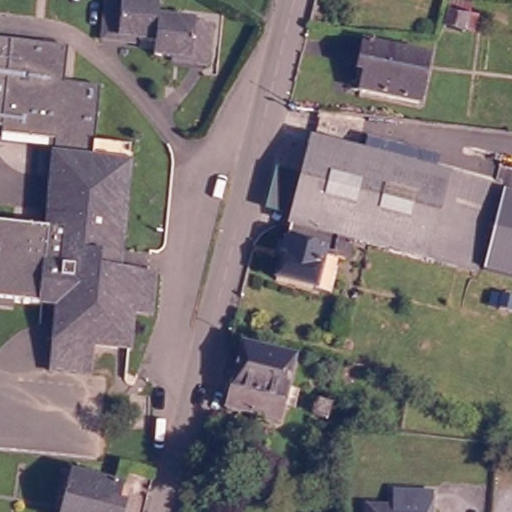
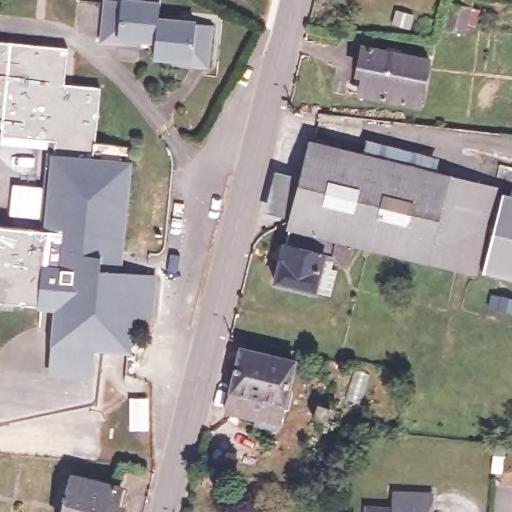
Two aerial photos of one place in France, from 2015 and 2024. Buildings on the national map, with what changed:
unchanged [(96,59),(100,3),(155,9),(155,26),(151,65),(141,64),(116,61),(96,59)]
unchanged [(155,26),(207,30),(204,77),(173,75),(174,65),(151,65),(155,26)]
unchanged [(54,77),(94,79),(92,133),(129,136),(126,228),(117,228),(116,267),(166,270),(165,305),(139,303),(136,340),(100,338),(55,335),(56,304),(0,301),(0,222),(40,223),(41,134),(0,132),(0,37),(55,39),(54,77)]
unchanged [(364,92),(368,69),(362,68),(366,45),(431,59),(420,103),(364,92)]
unchanged [(441,174),(417,259),(362,245),(332,237),(283,224),(305,139),(441,174)]
unchanged [(441,174),(488,184),(465,269),(417,259),(441,174)]
unchanged [(472,272),(492,193),(512,198),(512,282),(472,272)]
unchanged [(332,237),(330,250),(318,247),(307,289),(270,281),(283,224),(332,237)]
unchanged [(491,302),(495,287),(512,292),(512,305),(511,307),(500,305),(491,302)]
unchanged [(99,371),(54,369),(55,335),(100,338),(99,371)]
unchanged [(233,412),(245,359),(295,370),(281,423),(233,412)]
unchanged [(310,408),(313,390),(330,394),(325,412),(310,408)]
unchanged [(126,488),(119,512),(69,512),(77,476),(126,488)]
unchanged [(391,506),(393,487),(430,490),(428,512),(364,512),(364,505),(391,506)]

